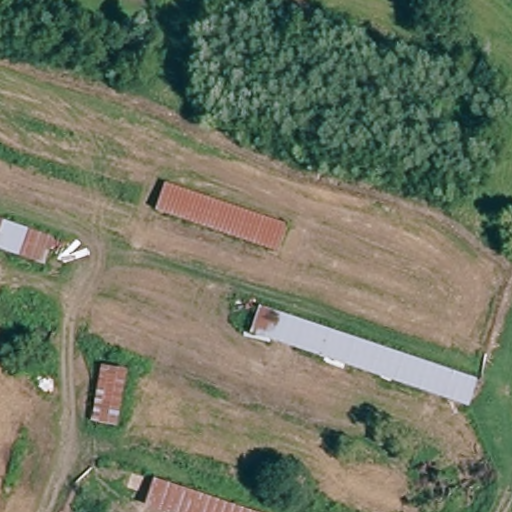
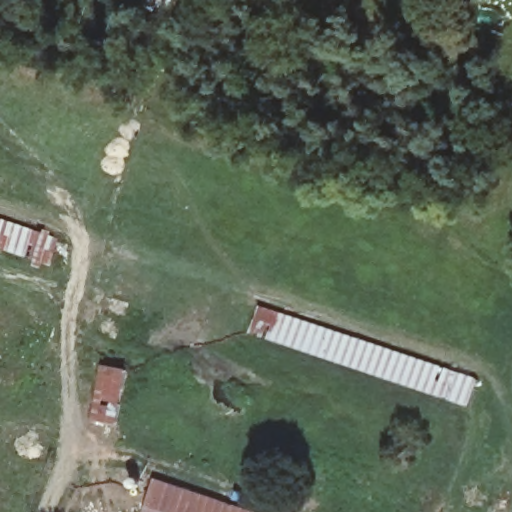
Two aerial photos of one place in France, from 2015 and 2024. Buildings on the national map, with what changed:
demolished [(170,184),(292,224),(283,254),(159,214),(170,184)]
unchanged [(55,268),(0,250),(0,217),(57,235),(55,268)]
unchanged [(267,309),(485,381),(474,409),(256,336),(267,309)]
unchanged [(122,428),(94,421),(104,366),(132,368),(122,428)]
unchanged [(146,509),(156,481),(253,512),(154,512),(146,509)]
new [(154,512),(145,512),(146,509),(154,512)]

